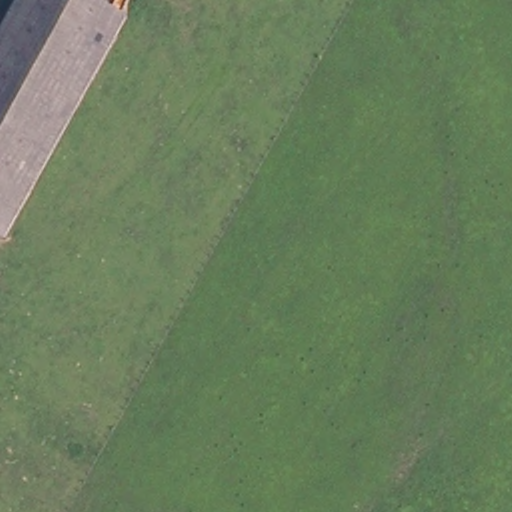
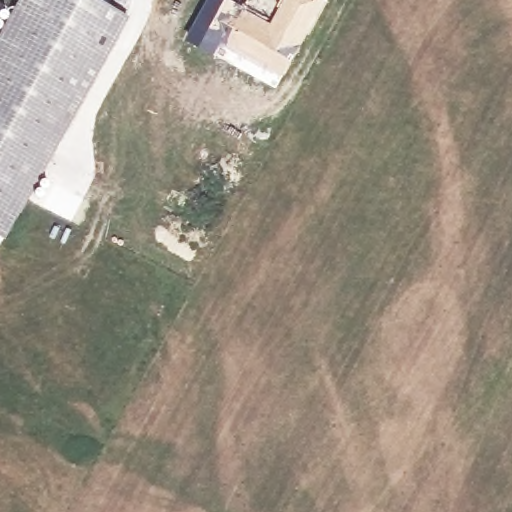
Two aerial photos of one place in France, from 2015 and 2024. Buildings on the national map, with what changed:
unchanged [(9,242),(0,237),(0,30),(17,0),(96,0),(133,21),(9,242)]
new [(233,0),(271,21),(281,0),(328,0),(313,27),(281,75),(274,72),(255,65),(221,47),(216,56),(185,40),(207,0),(233,0)]

